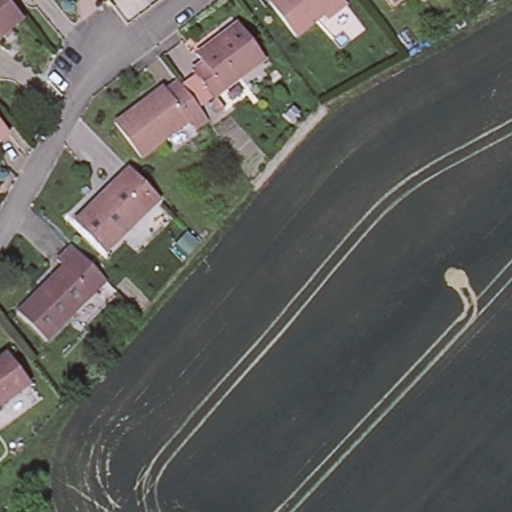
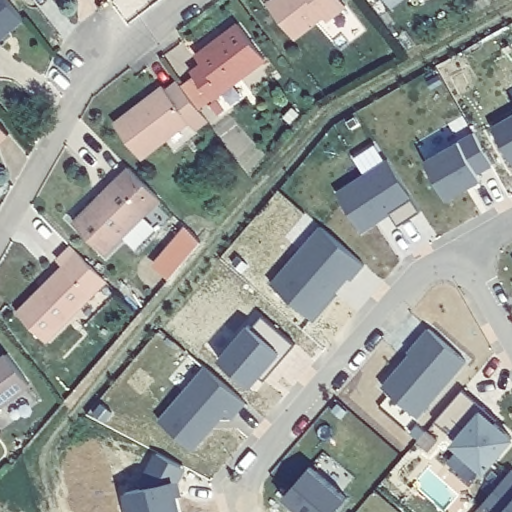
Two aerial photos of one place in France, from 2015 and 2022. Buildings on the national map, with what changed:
unchanged [(30,7),(0,34),(0,0),(24,0),(30,7)]
unchanged [(348,7),(329,21),(325,17),(297,38),(271,4),(276,0),(343,0),(348,7)]
unchanged [(394,2),(393,0),(396,0),(394,2)]
unchanged [(266,57),(215,96),(194,68),(205,61),(199,53),(240,22),(266,57)]
unchanged [(116,121),(164,85),(167,89),(180,79),(206,114),(193,123),(190,118),(141,155),(116,121)]
unchanged [(219,97),(227,107),(221,111),(214,101),(219,97)]
unchanged [(6,126),(0,131),(0,119),(6,126)]
new [(512,120),(512,160),(495,130),(512,120)]
new [(468,190),(449,201),(427,162),(475,135),(493,168),(479,175),(482,179),(483,181),(468,190)]
new [(400,228),(390,212),(377,220),(379,223),(364,233),(339,194),(389,162),(422,214),(400,228)]
unchanged [(77,223),(100,200),(118,182),(130,170),(161,201),(107,253),(77,223)]
new [(377,220),(390,212),(392,215),(379,223),(377,220)]
new [(182,228),(198,243),(167,280),(151,267),(182,228)]
new [(336,296),(314,321),(273,285),(322,228),(366,267),(353,282),(347,276),(350,279),(336,296)]
unchanged [(109,278),(48,339),(18,309),(64,264),(58,259),(74,243),(110,278),(109,278)]
new [(246,330),(277,357),(246,393),(217,365),(246,330)]
new [(431,332),(465,363),(416,419),(382,389),(431,332)]
unchanged [(8,351),(30,380),(0,402),(0,357),(8,351)]
new [(205,368),(246,401),(232,419),(222,409),(208,428),(210,430),(194,449),(160,419),(183,392),(168,380),(189,354),(205,368)]
new [(456,445),(459,441),(437,422),(465,390),(487,410),(484,413),(512,438),(512,442),(487,471),(456,445)]
new [(100,405),(112,415),(105,424),(91,417),(100,405)]
new [(500,420),(496,424),(484,413),(487,410),(500,420)]
new [(153,457),(183,471),(174,487),(179,512),(122,512),(119,497),(139,492),(153,457)]
new [(337,512),(301,512),(285,499),(312,468),(349,499),(337,512)]
new [(512,473),(512,512),(487,512),(482,508),(512,473)]

